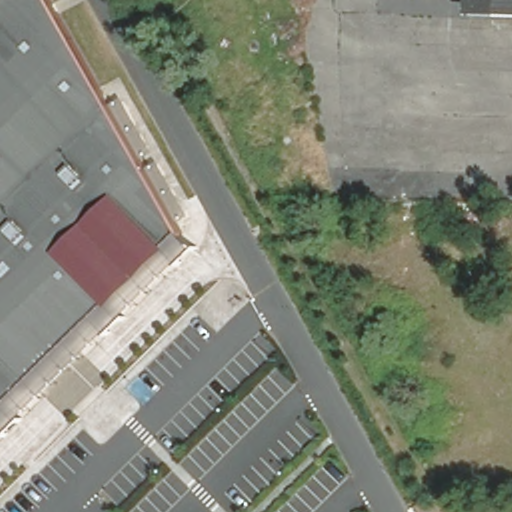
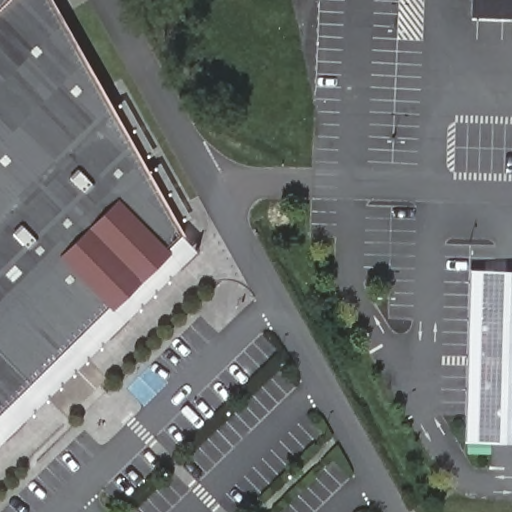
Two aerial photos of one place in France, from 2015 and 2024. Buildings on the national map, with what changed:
unchanged [(179,232),(0,406),(0,0),(48,0),(179,232)]
unchanged [(467,0),(512,0),(512,11),(467,10),(467,0)]
unchanged [(512,28),(467,26),(467,10),(512,11),(512,28)]
new [(472,270),(512,271),(512,443),(490,442),(490,453),(471,453),(471,442),(468,442),(472,270)]

